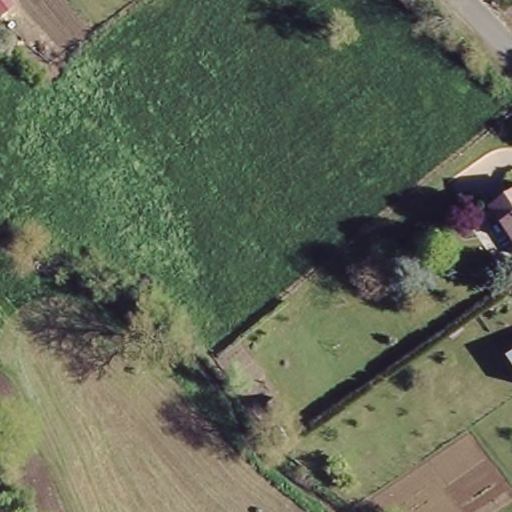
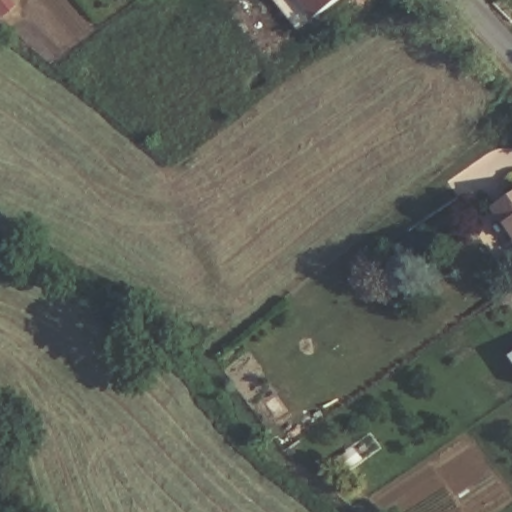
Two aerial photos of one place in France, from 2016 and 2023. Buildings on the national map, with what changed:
new [(297,30),(273,0),(340,0),(314,21),(297,30)]
unchanged [(512,243),(487,207),(512,190),(512,243)]
unchanged [(512,364),(506,355),(512,351),(512,364)]

